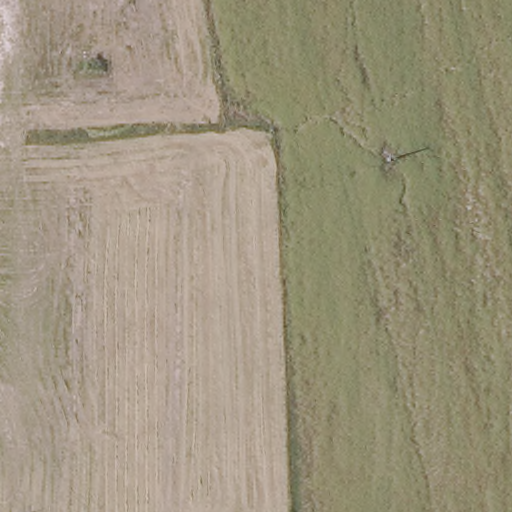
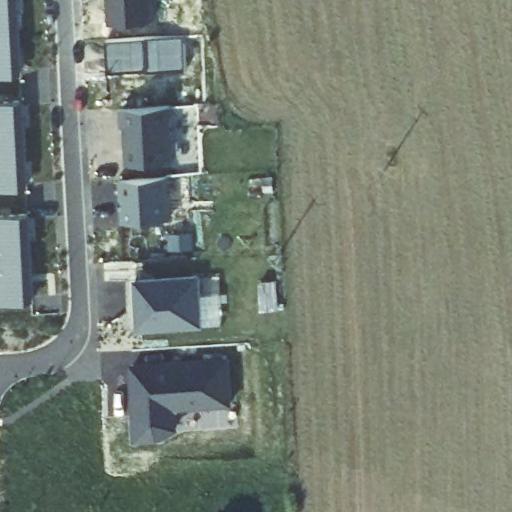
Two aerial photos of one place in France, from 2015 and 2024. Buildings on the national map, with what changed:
new [(24,74),(0,74),(0,0),(21,0),(24,74)]
new [(153,26),(108,27),(107,0),(151,0),(153,26)]
new [(107,39),(182,35),(184,69),(109,71),(107,39)]
new [(30,187),(0,189),(0,102),(25,100),(30,187)]
new [(173,159),(128,161),(126,124),(123,124),(122,107),(170,104),(173,159)]
new [(122,179),(170,177),(172,221),(130,224),(128,203),(122,202),(122,179)]
new [(36,301),(0,303),(0,217),(33,215),(36,301)]
new [(188,232),(188,246),(173,247),(172,232),(188,232)]
new [(200,276),(202,327),(137,328),(136,280),(200,276)]
new [(220,295),(222,322),(202,324),(200,296),(220,295)]
new [(231,404),(180,407),(176,411),(177,428),(158,438),(138,439),(136,406),(138,406),(138,395),(135,396),(135,386),(140,385),(139,366),(134,367),(134,365),(228,360),(231,404)]

